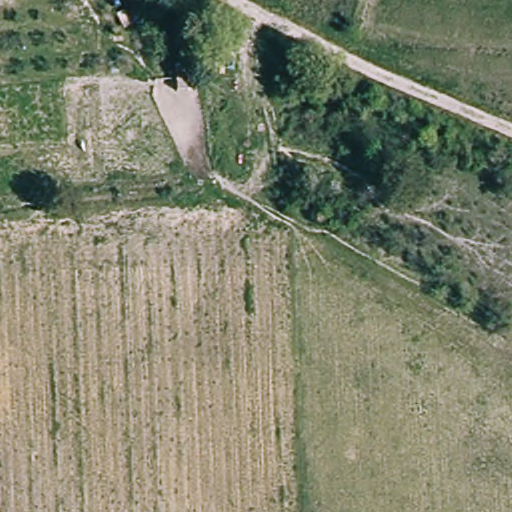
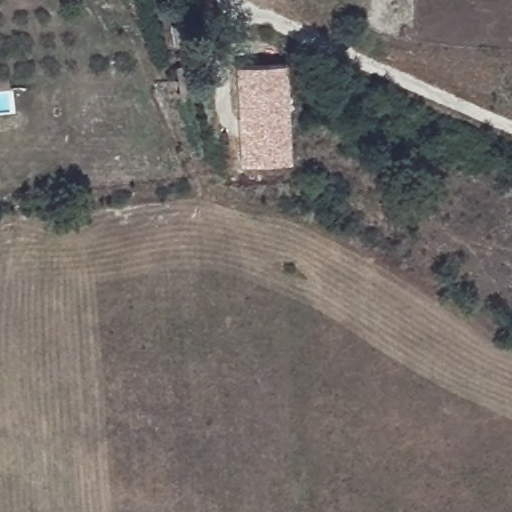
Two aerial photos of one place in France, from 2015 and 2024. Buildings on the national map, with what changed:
new [(282,65),(287,165),(239,168),(234,68),(282,65)]

